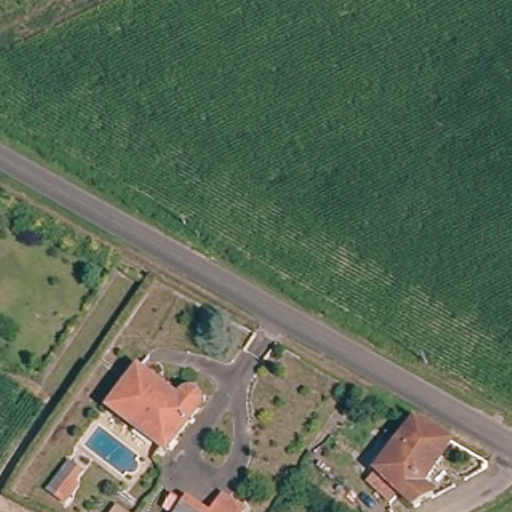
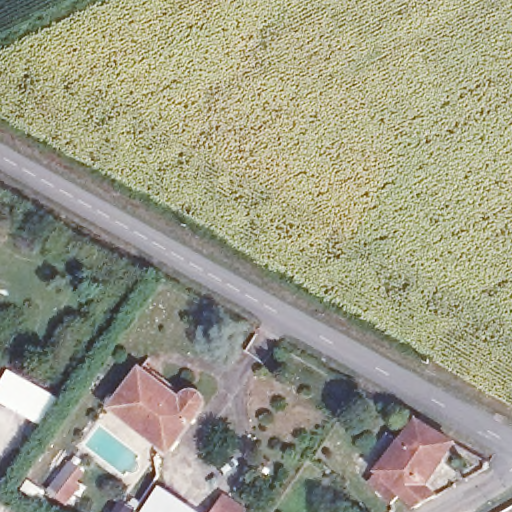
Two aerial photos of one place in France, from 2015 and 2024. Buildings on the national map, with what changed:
new [(0,383),(7,369),(60,397),(46,423),(0,399),(0,383)]
unchanged [(181,402),(187,393),(201,392),(206,405),(173,454),(115,417),(141,377),(181,402)]
unchanged [(376,485),(390,468),(420,419),(456,440),(428,487),(441,495),(422,506),(409,494),(397,505),(376,485)]
unchanged [(74,495),(77,497),(69,510),(50,498),(67,472),(82,483),(74,495)]
new [(197,512),(140,512),(157,484),(197,512)]
new [(222,493),(247,508),(244,512),(210,512),(222,493)]

